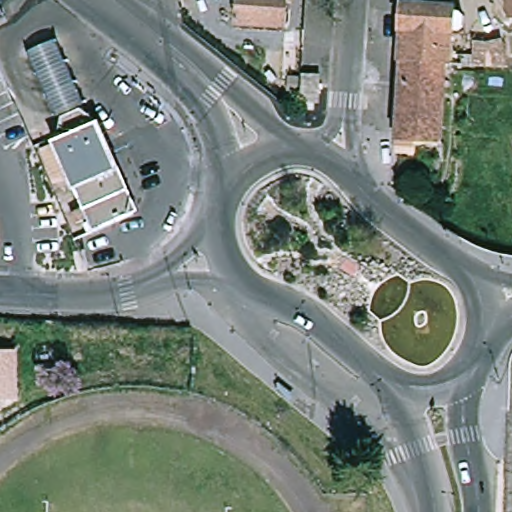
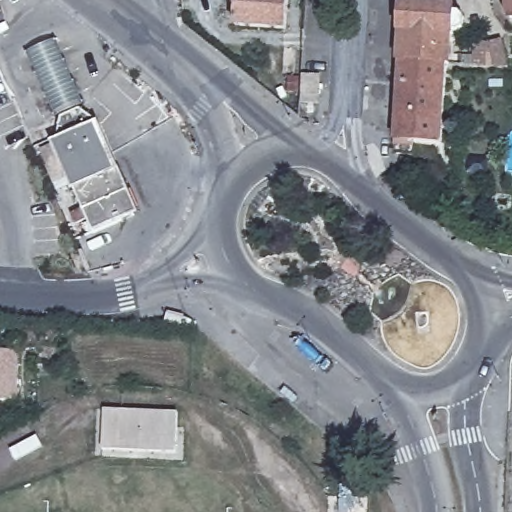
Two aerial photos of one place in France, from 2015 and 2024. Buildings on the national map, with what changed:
unchanged [(289,39),(237,36),(239,0),(291,0),(291,3),(289,39)]
unchanged [(401,27),(402,0),(452,0),(452,4),(455,4),(455,6),(459,6),(465,11),(465,20),(459,25),(454,24),(454,31),(451,31),(449,60),(445,60),(402,56),(404,27),(401,27)]
unchanged [(510,0),(512,0),(512,12),(509,7),(510,0)]
unchanged [(84,103),(52,115),(26,51),(57,38),(84,103)]
unchanged [(478,41),(481,42),(486,43),(490,43),(495,43),(502,42),(500,70),(473,68),(475,41),(478,41)]
unchanged [(397,148),(397,136),(397,135),(402,56),(445,60),(441,138),(416,136),(415,149),(397,148)]
unchanged [(323,74),(321,101),(303,99),(306,72),(323,74)]
unchanged [(66,139),(62,129),(64,119),(78,113),(94,127),(130,218),(89,235),(50,145),(66,139)]
unchanged [(415,154),(439,154),(439,168),(414,167),(415,154)]
unchanged [(19,401),(0,401),(0,352),(17,352),(19,401)]
new [(179,413),(177,455),(103,453),(105,410),(179,413)]

